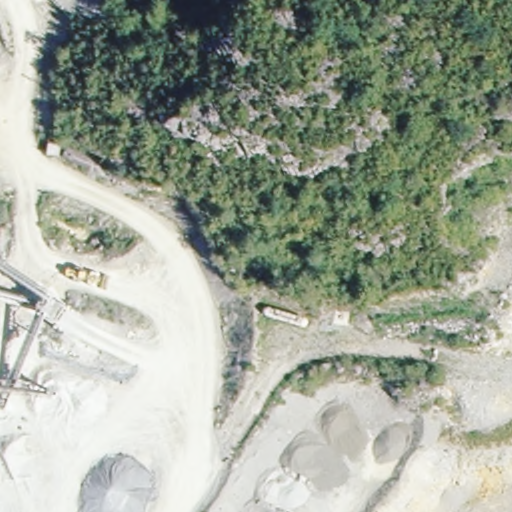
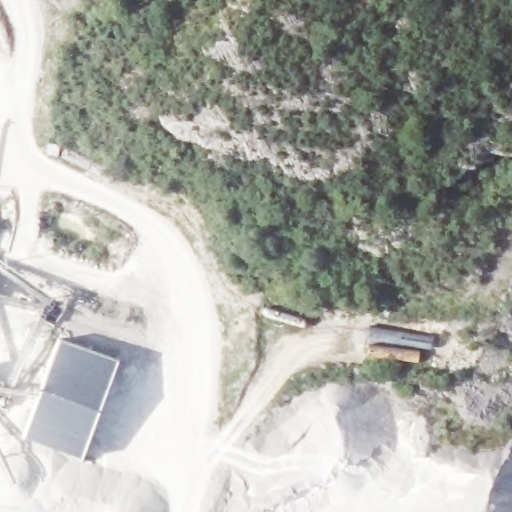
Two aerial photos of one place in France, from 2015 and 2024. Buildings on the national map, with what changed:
new [(115,361),(79,460),(22,439),(58,340),(115,361)]

